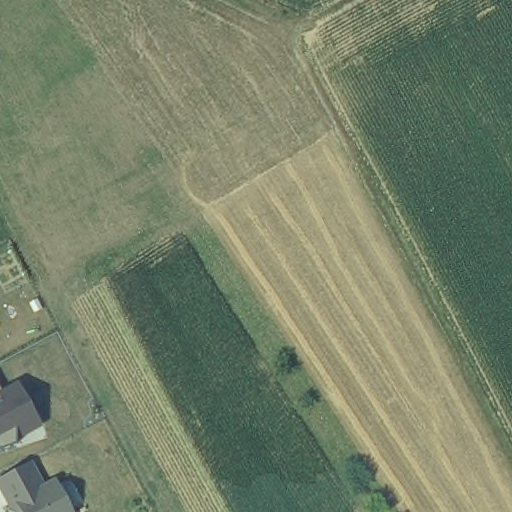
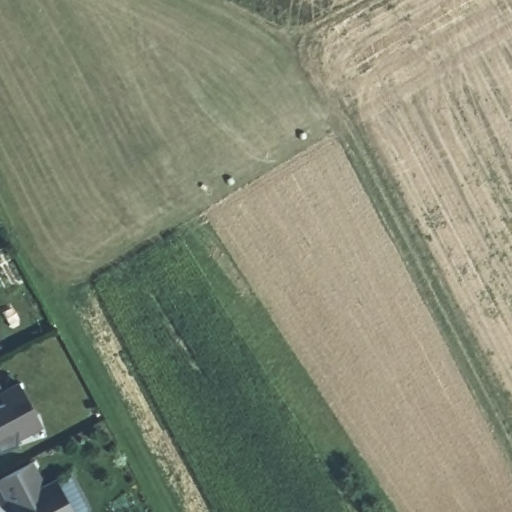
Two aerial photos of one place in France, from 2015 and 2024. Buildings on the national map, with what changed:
unchanged [(42,426),(0,450),(0,390),(17,380),(42,426)]
unchanged [(0,480),(33,462),(44,482),(55,477),(75,512),(19,512),(0,481),(0,480)]

